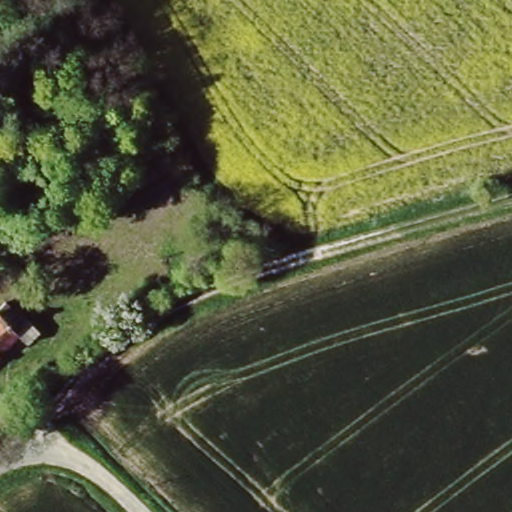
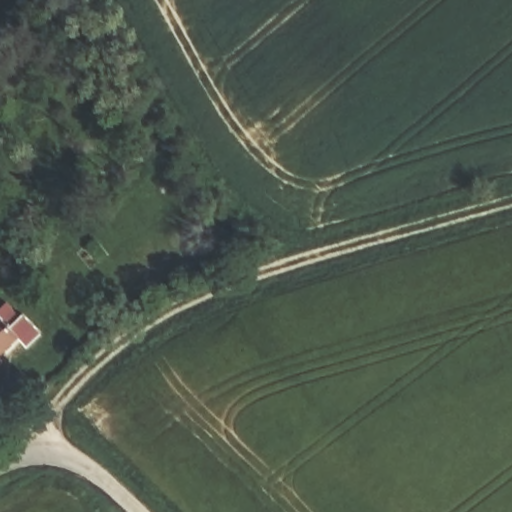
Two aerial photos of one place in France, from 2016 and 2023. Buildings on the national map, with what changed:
unchanged [(11,322),(16,317),(33,335),(20,346),(15,341),(0,357),(0,311),(11,322)]

